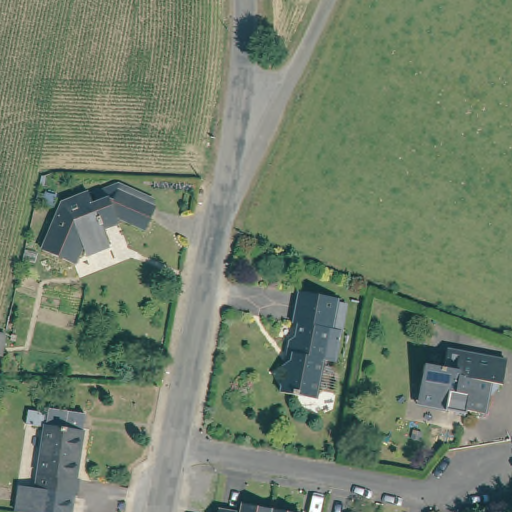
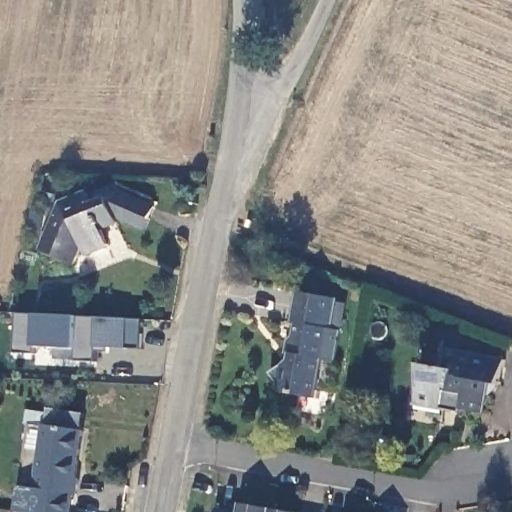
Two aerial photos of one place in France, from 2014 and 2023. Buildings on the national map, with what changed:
unchanged [(152,207),(145,229),(120,219),(121,228),(108,231),(112,248),(92,254),(86,243),(81,261),(45,248),(61,205),(85,189),(90,199),(116,198),(118,194),(152,207)]
unchanged [(340,299),(335,332),(345,333),(339,365),(329,364),(323,396),(288,390),(290,379),(277,368),(295,358),(296,353),(293,352),(296,339),(303,341),(304,332),(300,331),(307,293),(340,299)]
new [(96,350),(95,362),(75,361),(78,349),(35,348),(35,355),(14,353),(16,314),(36,315),(81,317),(142,320),(142,348),(96,350)]
demolished [(0,355),(0,332),(2,333),(1,339),(1,345),(0,355)]
unchanged [(430,415),(434,398),(424,396),(428,376),(448,381),(453,358),(470,362),(469,368),(456,416),(455,421),(430,415)]
unchanged [(511,378),(506,399),(497,397),(490,425),(456,416),(469,368),(511,378)]
unchanged [(44,490),(54,427),(57,411),(89,416),(86,432),(90,433),(82,480),(87,480),(84,496),(76,495),(73,512),(20,512),(24,487),(44,490)]
unchanged [(245,504),(277,508),(276,512),(243,512),(245,504)]
unchanged [(277,508),(298,512),(276,512),(277,508)]

